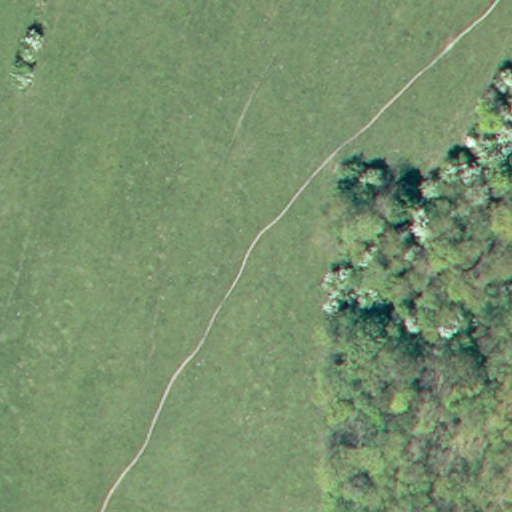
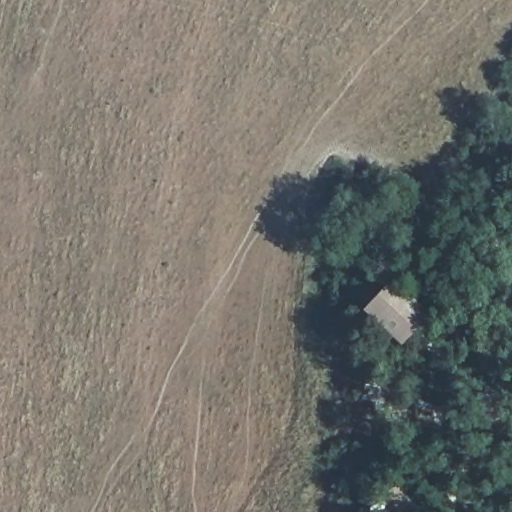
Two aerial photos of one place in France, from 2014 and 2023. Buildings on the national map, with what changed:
new [(363,308),(391,277),(429,311),(401,343),(363,308)]

